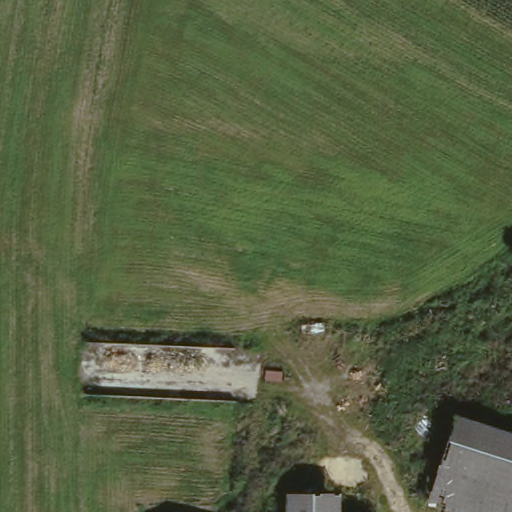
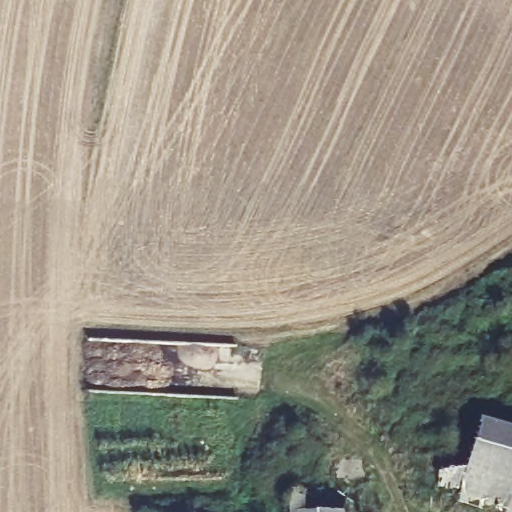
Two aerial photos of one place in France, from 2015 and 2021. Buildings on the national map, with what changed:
unchanged [(408,499),(428,416),(442,419),(423,502),(408,499)]
unchanged [(512,437),(512,512),(463,512),(423,502),(442,419),(464,425),(512,437)]
unchanged [(291,496),(376,495),(377,512),(290,512),(290,503),(291,496)]

